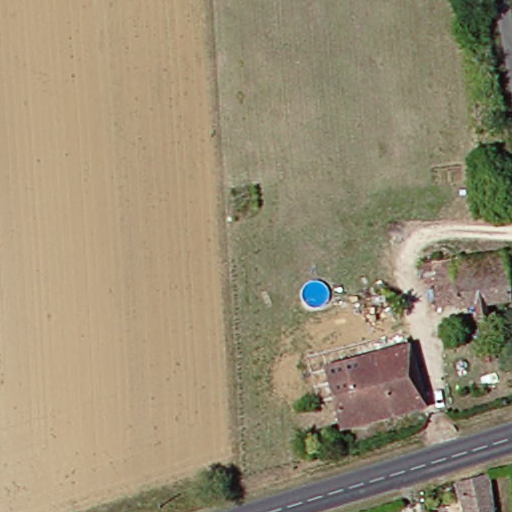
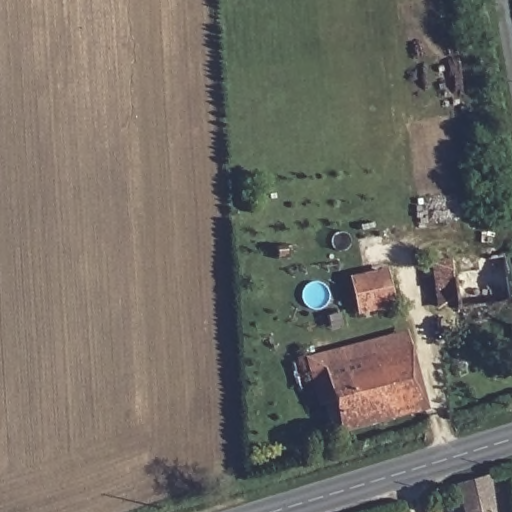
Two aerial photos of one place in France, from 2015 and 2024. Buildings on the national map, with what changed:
unchanged [(485,319),(485,307),(466,310),(464,305),(449,306),(447,282),(433,283),(431,263),(512,255),(512,304),(497,306),(497,318),(485,319)]
new [(352,277),(388,270),(397,310),(361,317),(357,296),(352,277)]
unchanged [(351,433),(335,373),(418,350),(435,410),(351,433)]
unchanged [(475,502),(471,487),(497,479),(505,512),(463,512),(462,506),(475,502)]

